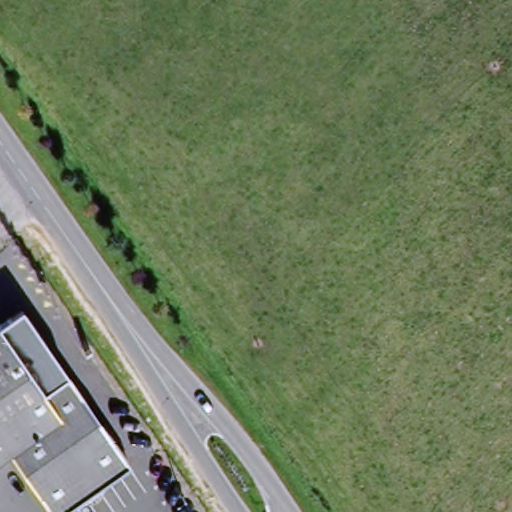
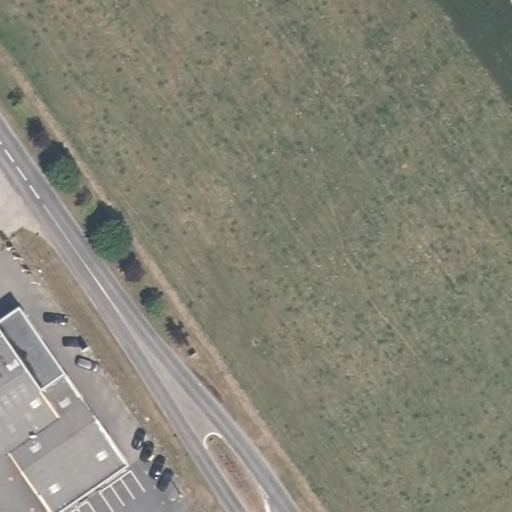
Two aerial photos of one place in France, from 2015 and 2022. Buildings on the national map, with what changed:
unchanged [(66,380),(129,470),(68,512),(52,512),(9,451),(0,457),(0,325),(14,314),(66,380)]

